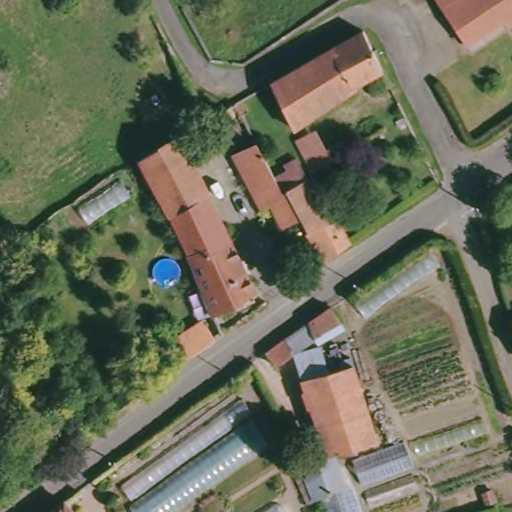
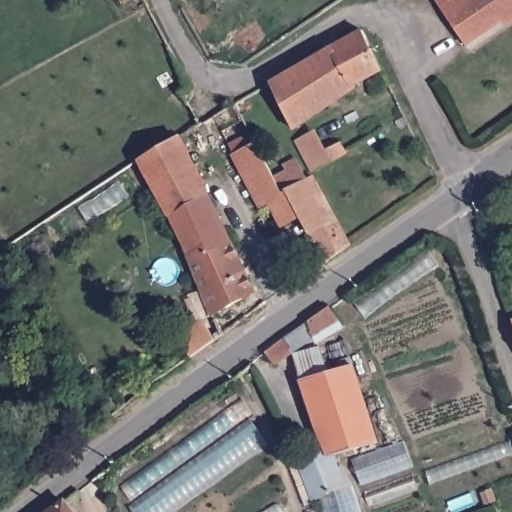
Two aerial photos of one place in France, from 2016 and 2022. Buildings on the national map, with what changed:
unchanged [(465,48),(435,0),(512,0),(512,19),(465,48)]
unchanged [(352,71),(357,81),(322,100),(287,119),(272,83),(360,35),(372,60),(352,71)]
unchanged [(322,100),(343,143),(307,162),(287,119),(322,100)]
unchanged [(375,105),(381,117),(365,126),(358,114),(375,105)]
unchanged [(226,287),(237,311),(214,329),(141,168),(135,155),(176,129),(184,147),(243,279),(226,287)]
unchanged [(280,180),(294,210),(275,219),(267,202),(259,204),(231,152),(253,139),(280,180)]
unchanged [(342,240),(317,258),(294,210),(280,180),(309,166),(342,240)]
unchanged [(265,350),(308,322),(332,304),(345,328),(318,344),(317,340),(276,367),(265,350)]
unchanged [(510,311),(512,311),(512,319),(510,311)]
unchanged [(178,346),(197,332),(202,341),(183,356),(178,346)]
unchanged [(327,369),(348,362),(374,439),(350,448),(352,453),(344,457),(330,462),(275,367),(319,350),(327,369)]
unchanged [(239,387),(269,440),(179,512),(129,512),(107,484),(239,387)]
unchanged [(403,439),(412,468),(362,486),(353,458),(403,439)]
unchanged [(344,457),(352,482),(319,495),(312,497),(302,472),(330,462),(344,457)]
unchanged [(362,512),(318,512),(312,497),(319,495),(352,482),(362,512)]
unchanged [(282,512),(244,512),(273,493),(282,512)]
unchanged [(46,512),(61,500),(69,512),(46,512)]

